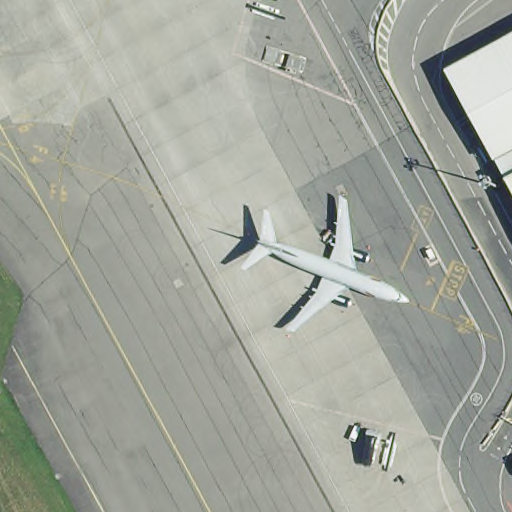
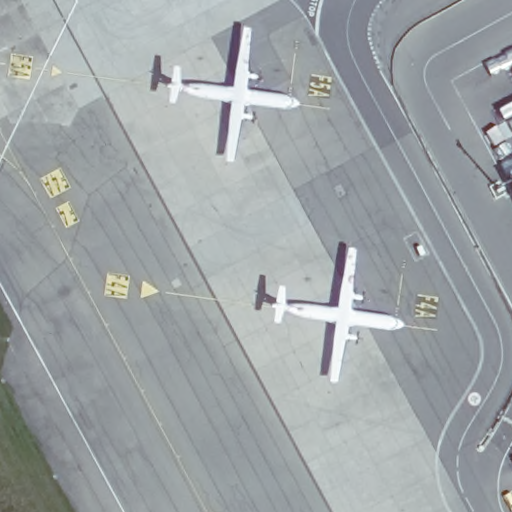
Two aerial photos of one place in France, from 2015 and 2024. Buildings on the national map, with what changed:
demolished [(502,154),(454,65),(512,33),(512,148),(502,154)]

